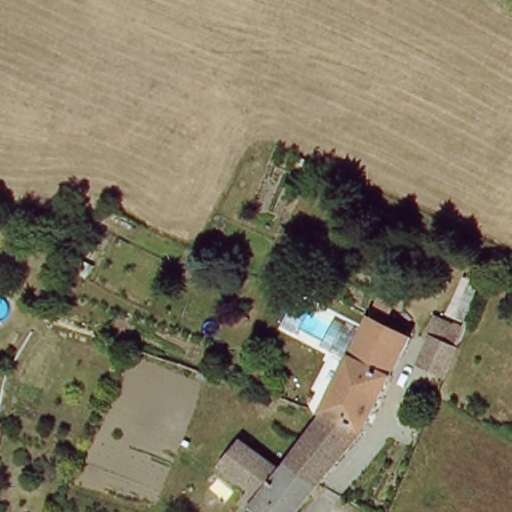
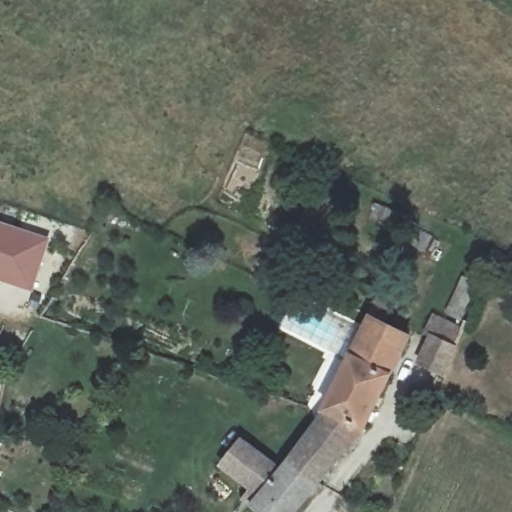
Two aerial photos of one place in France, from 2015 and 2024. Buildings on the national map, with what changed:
new [(52,239),(35,291),(0,280),(0,221),(52,239)]
unchanged [(420,365),(435,331),(425,326),(433,307),(452,314),(448,323),(466,328),(445,375),(420,365)]
unchanged [(344,377),(360,345),(376,312),(391,318),(383,333),(410,345),(386,395),(344,377)]
unchanged [(312,437),(320,424),(326,412),(333,399),(340,381),(344,377),(386,395),(380,412),(365,435),(322,486),(290,462),(312,437)]
unchanged [(322,486),(297,512),(253,512),(251,511),(260,499),(223,468),(243,445),(280,472),(290,462),(322,486)]

